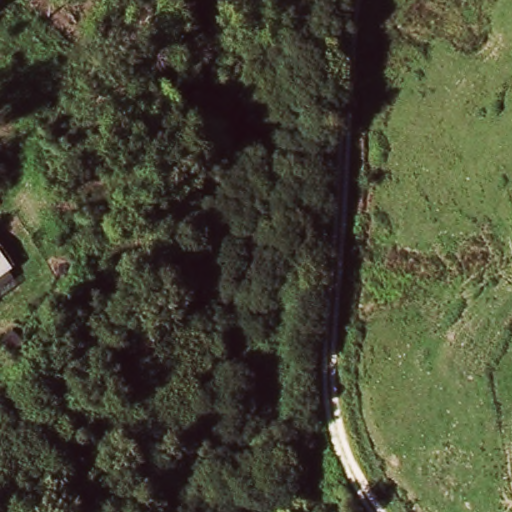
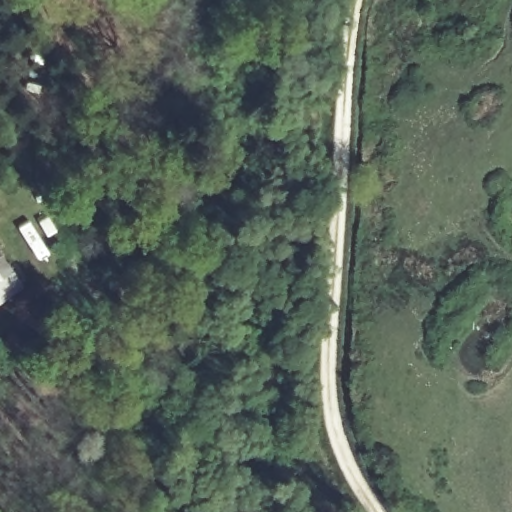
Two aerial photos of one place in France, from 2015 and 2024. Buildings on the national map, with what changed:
unchanged [(6,265),(0,270),(0,257),(6,265)]

